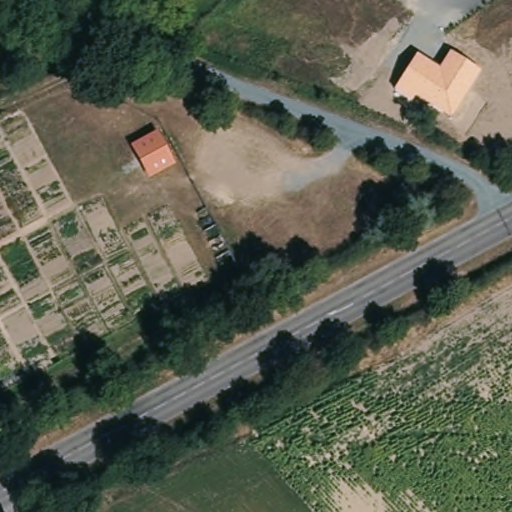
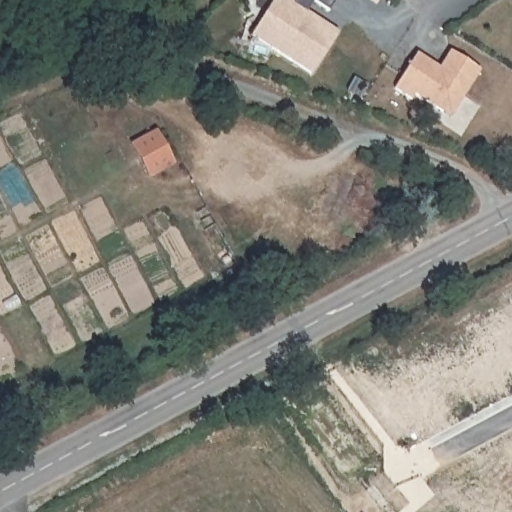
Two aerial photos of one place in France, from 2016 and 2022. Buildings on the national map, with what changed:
new [(301,11),(308,0),(349,0),(337,19),(321,9),(315,20),(329,29),(347,40),(320,81),(260,43),(286,1),(301,11)]
unchanged [(479,70),(450,118),(413,96),(411,99),(395,89),(417,54),(439,66),(448,51),(479,70)]
unchanged [(159,131),(177,164),(149,179),(130,145),(159,131)]

